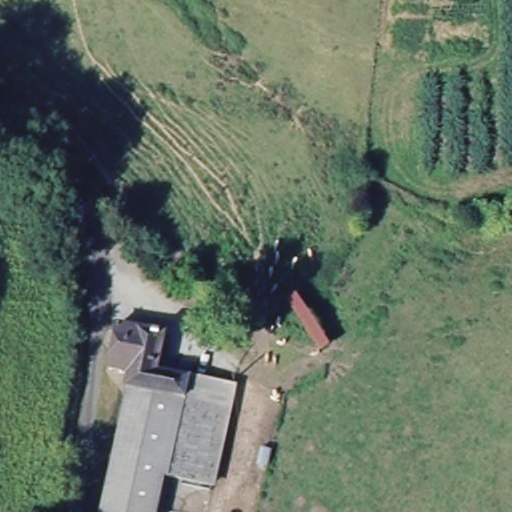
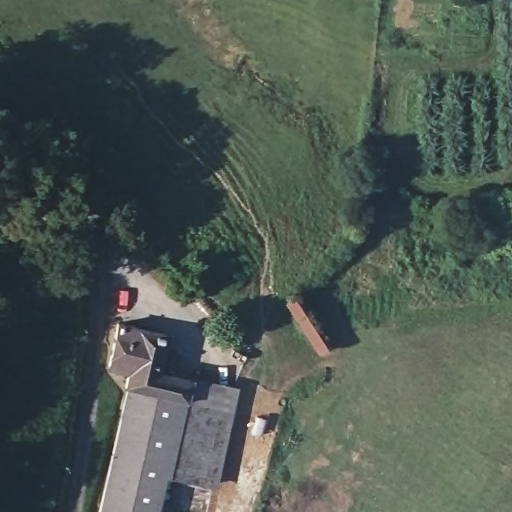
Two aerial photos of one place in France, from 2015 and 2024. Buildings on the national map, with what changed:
unchanged [(339,346),(320,361),(280,304),(300,291),(339,346)]
unchanged [(171,338),(164,372),(188,379),(185,397),(125,382),(127,372),(105,369),(114,324),(171,338)]
unchanged [(185,397),(188,379),(232,387),(210,490),(168,482),(185,397)]
unchanged [(168,482),(161,512),(102,512),(125,382),(185,397),(168,482)]

